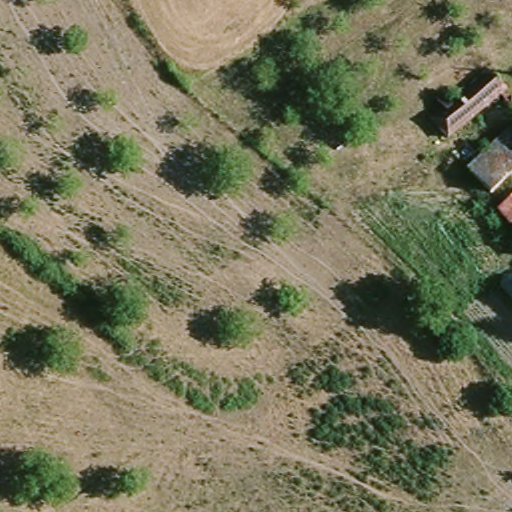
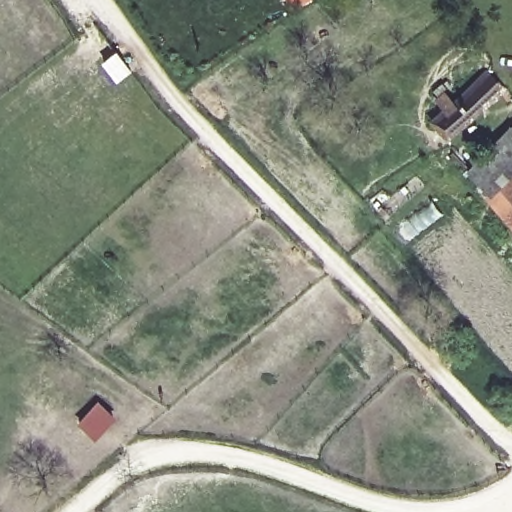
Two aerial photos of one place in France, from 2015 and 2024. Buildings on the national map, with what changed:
unchanged [(487,73),(507,96),(446,146),(428,121),(487,73)]
unchanged [(468,173),(512,138),(512,174),(483,197),(468,173)]
unchanged [(505,211),(504,210),(508,208),(509,207),(512,205),(512,218),(505,211)]
new [(117,418),(97,442),(73,425),(95,397),(117,418)]

